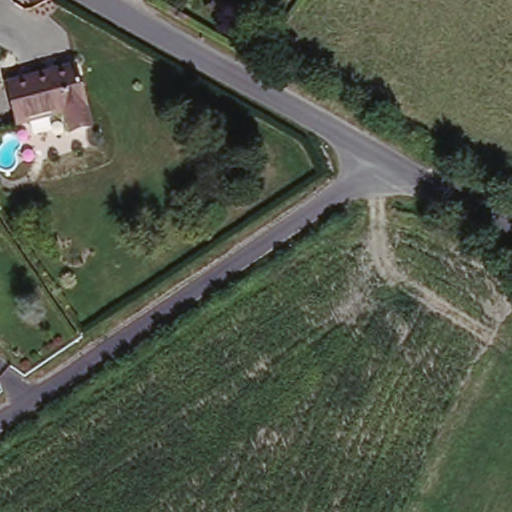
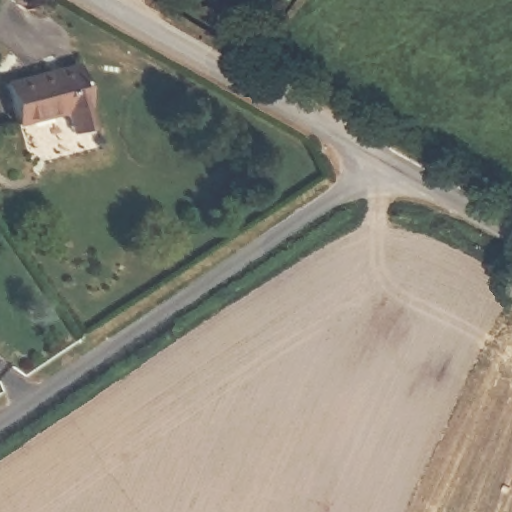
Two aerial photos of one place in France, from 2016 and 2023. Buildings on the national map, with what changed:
unchanged [(77,63),(93,124),(71,131),(66,109),(18,123),(7,82),(77,63)]

